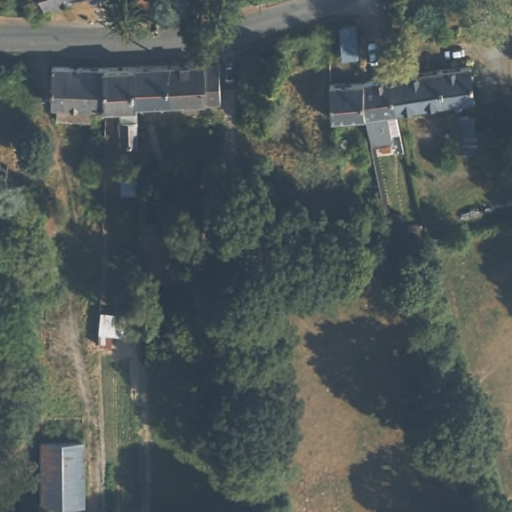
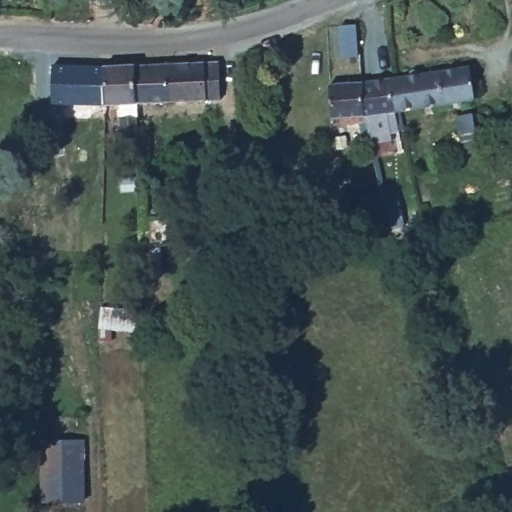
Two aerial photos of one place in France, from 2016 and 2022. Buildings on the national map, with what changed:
unchanged [(41,0),(54,0),(42,4),(41,0)]
unchanged [(352,30),(352,51),(339,50),(340,30),(352,30)]
unchanged [(221,100),(137,99),(136,64),(218,58),(221,100)]
unchanged [(90,98),(90,111),(55,109),(56,98),(50,98),(52,60),(101,63),(101,98),(90,98)]
unchanged [(473,60),(478,91),(403,105),(396,72),(473,60)]
unchanged [(119,135),(119,98),(101,98),(101,63),(136,64),(137,99),(138,135),(119,135)]
unchanged [(403,105),(391,107),(395,135),(375,137),(370,111),(366,83),(366,77),(396,72),(403,105)]
unchanged [(366,83),(370,111),(335,115),(333,82),(366,77),(366,83)]
unchanged [(477,126),(491,124),(493,139),(459,145),(453,115),(473,112),(477,126)]
unchanged [(170,216),(171,244),(163,243),(163,275),(142,275),(144,215),(170,216)]
unchanged [(144,308),(144,331),(117,328),(116,341),(98,339),(101,303),(144,308)]
unchanged [(42,441),(86,440),(82,504),(42,503),(42,441)]

